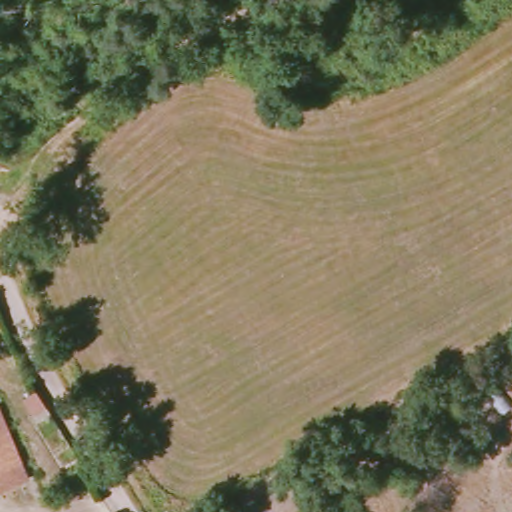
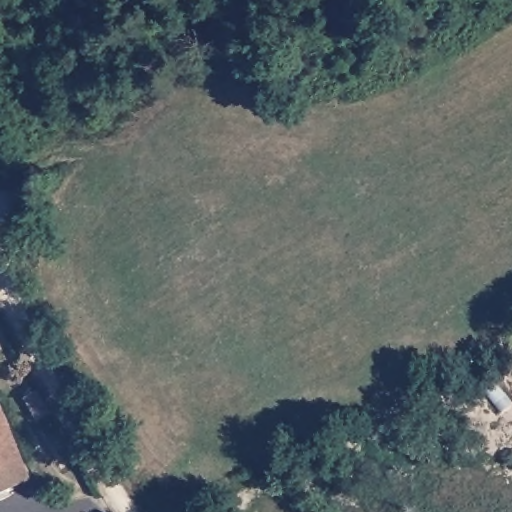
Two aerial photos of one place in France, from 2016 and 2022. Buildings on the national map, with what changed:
unchanged [(0,484),(0,420),(20,476),(0,484)]

